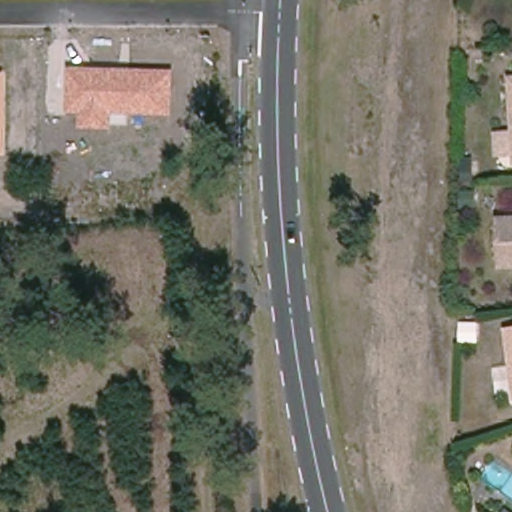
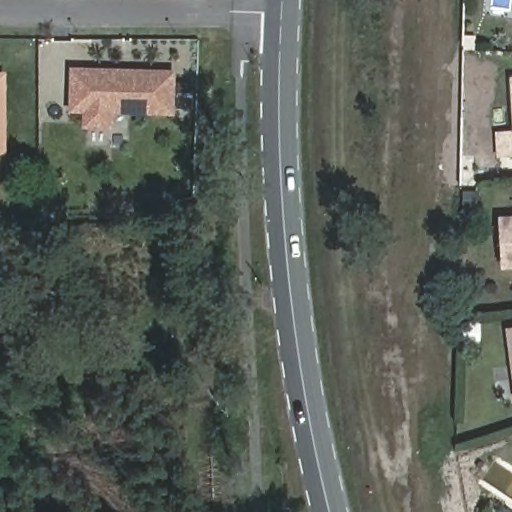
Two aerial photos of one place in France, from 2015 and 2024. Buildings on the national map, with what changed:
unchanged [(172,115),(115,113),(115,130),(81,130),(81,114),(71,113),(74,70),(174,70),(172,115)]
unchanged [(8,154),(0,154),(0,73),(9,72),(8,154)]
unchanged [(512,128),(512,150),(501,150),(500,128),(512,128)]
unchanged [(497,219),(512,219),(512,266),(500,268),(497,219)]
unchanged [(512,332),(512,383),(504,333),(512,332)]

